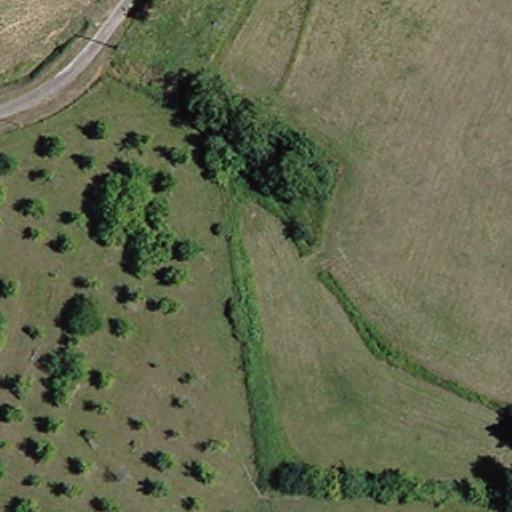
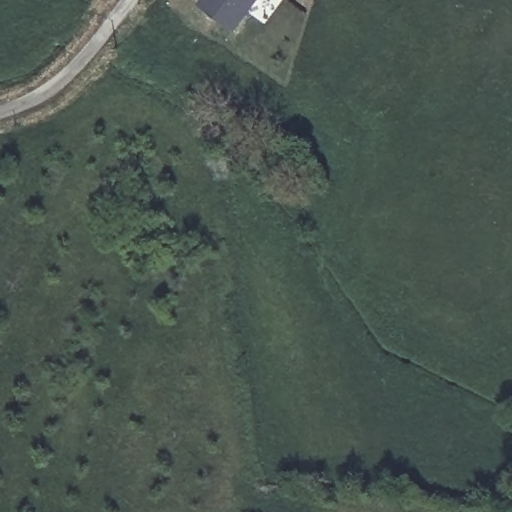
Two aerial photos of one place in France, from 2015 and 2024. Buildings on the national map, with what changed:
new [(257,0),(234,32),(199,7),(204,0),(257,0)]

